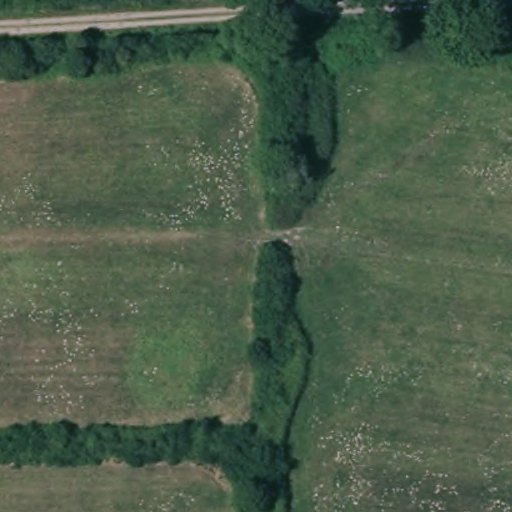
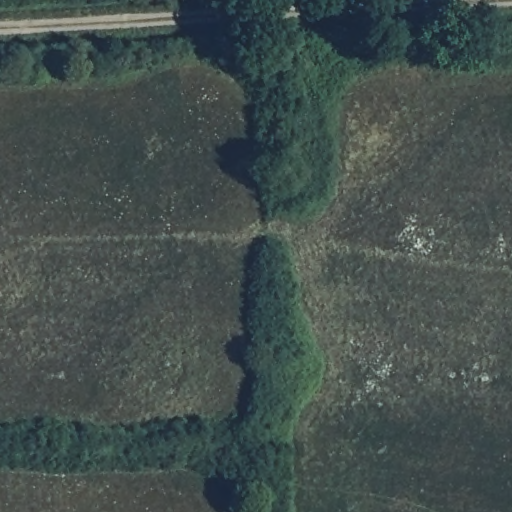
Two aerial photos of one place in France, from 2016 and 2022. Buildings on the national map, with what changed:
[]

